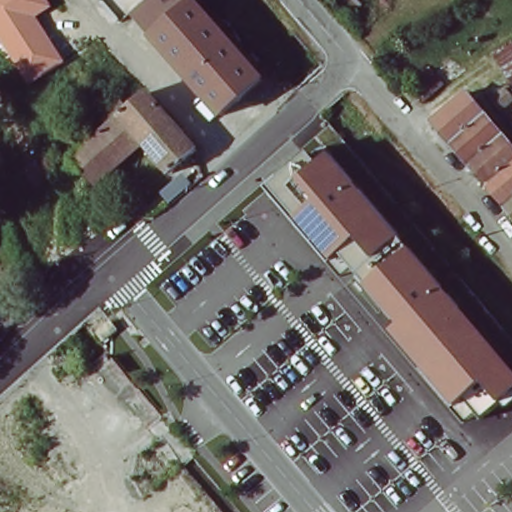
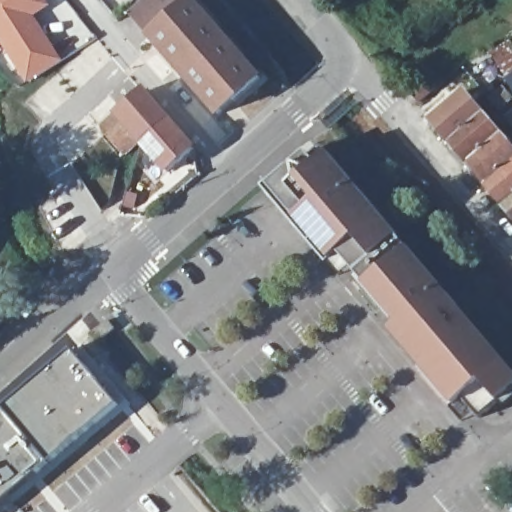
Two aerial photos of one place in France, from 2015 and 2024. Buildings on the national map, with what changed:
unchanged [(52,8),(37,17),(63,62),(27,82),(0,39),(0,0),(47,0),(52,8)]
unchanged [(130,15),(147,0),(196,0),(265,80),(218,119),(148,36),(130,15)]
unchanged [(487,99),(507,82),(488,52),(512,35),(512,129),(487,99)]
unchanged [(429,71),(440,87),(414,103),(405,89),(429,71)]
unchanged [(93,182),(67,150),(102,122),(90,109),(115,88),(127,101),(145,87),(171,118),(142,143),(93,182)]
unchanged [(428,121),(465,90),(484,113),(447,144),(428,121)]
unchanged [(502,135),(465,165),(447,144),(484,113),(502,135)]
unchanged [(192,146),(167,170),(142,143),(171,118),(192,146)]
unchanged [(465,165),(502,135),(512,146),(512,160),(482,185),(465,165)]
unchanged [(402,239),(358,275),(342,255),(332,263),(268,187),(307,153),(317,165),(330,153),(402,239)]
unchanged [(482,185),(512,160),(512,195),(499,206),(482,185)]
unchanged [(499,206),(512,195),(512,221),(499,206)]
unchanged [(377,260),(402,239),(512,369),(512,404),(507,408),(498,402),(482,418),(473,410),(465,419),(457,402),(452,407),(390,331),(397,324),(358,275),(377,260)]
new [(111,417),(0,509),(0,419),(67,364),(111,417)]

